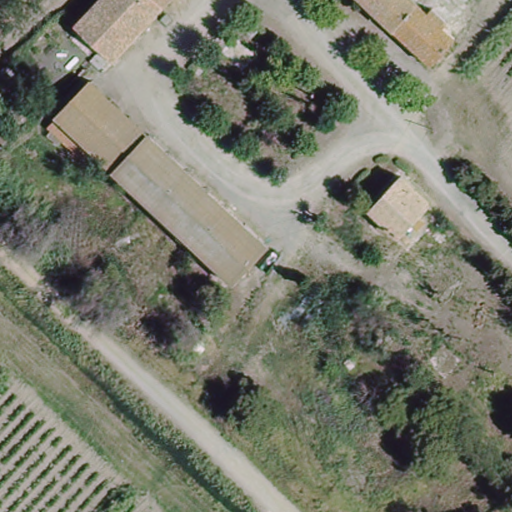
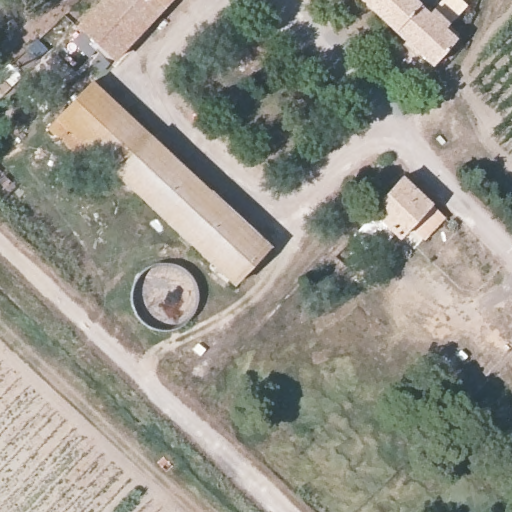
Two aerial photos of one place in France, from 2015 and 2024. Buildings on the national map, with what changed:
unchanged [(152,0),(102,53),(68,22),(89,0),(152,0)]
unchanged [(435,0),(438,0),(456,19),(445,30),(453,38),(424,63),(359,0),(416,0),(425,9),(435,0)]
unchanged [(88,76),(146,133),(257,242),(221,279),(109,169),(56,114),(88,76)]
unchanged [(0,108),(0,87),(13,100),(2,110),(0,108)]
unchanged [(89,150),(77,162),(42,126),(54,114),(89,150)]
unchanged [(397,176),(427,198),(401,234),(371,212),(397,176)]

